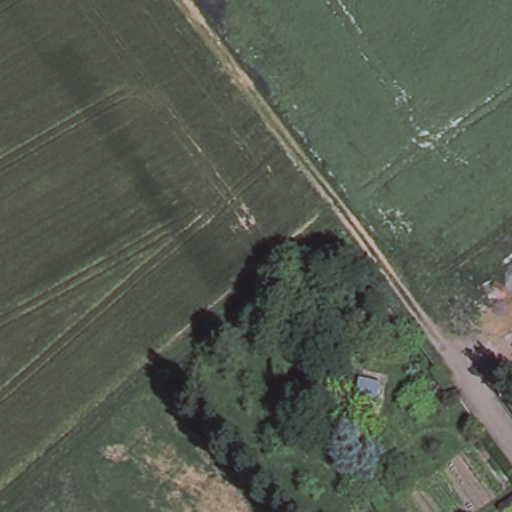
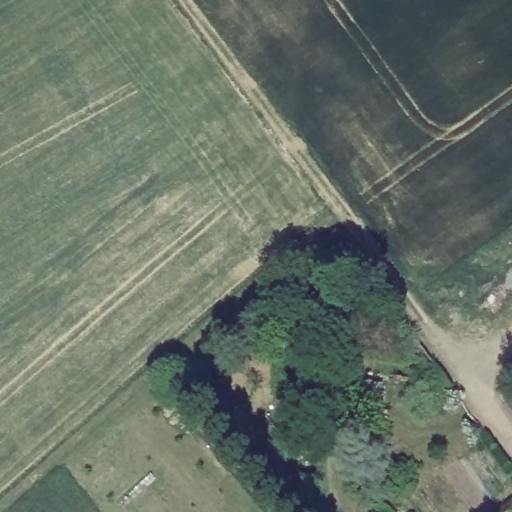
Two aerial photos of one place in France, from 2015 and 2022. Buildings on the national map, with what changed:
unchanged [(295,367),(295,345),(319,345),(317,368),(295,367)]

